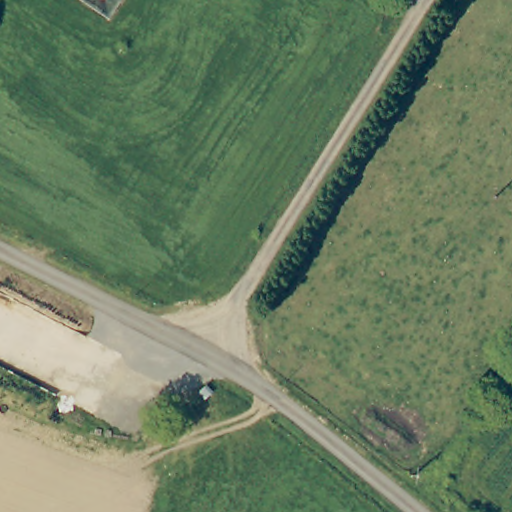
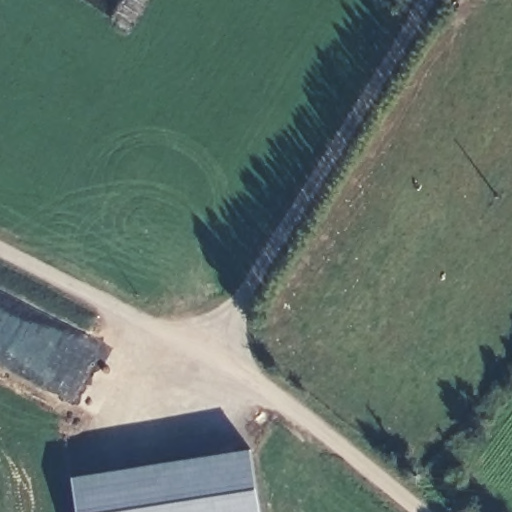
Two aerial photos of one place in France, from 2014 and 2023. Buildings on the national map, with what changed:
new [(261,512),(78,512),(73,481),(251,453),(261,512)]

